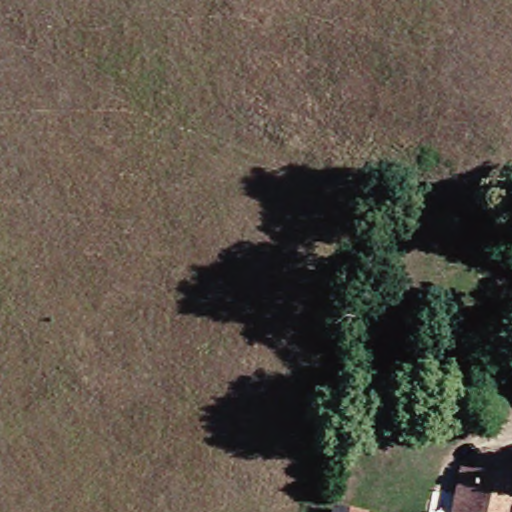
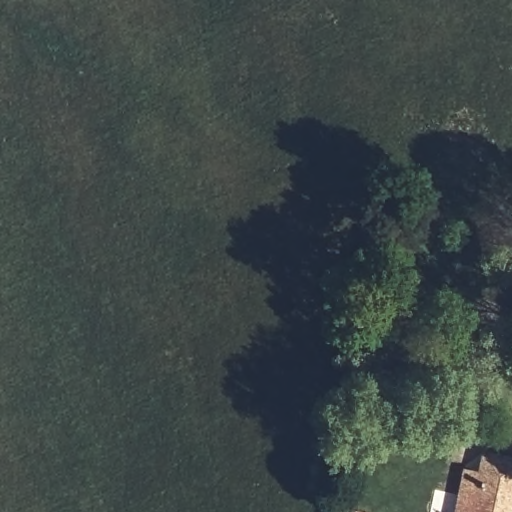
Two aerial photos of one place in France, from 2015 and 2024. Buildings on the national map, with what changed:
unchanged [(482,472),(486,454),(512,461),(512,492),(508,512),(449,512),(459,468),(482,472)]

